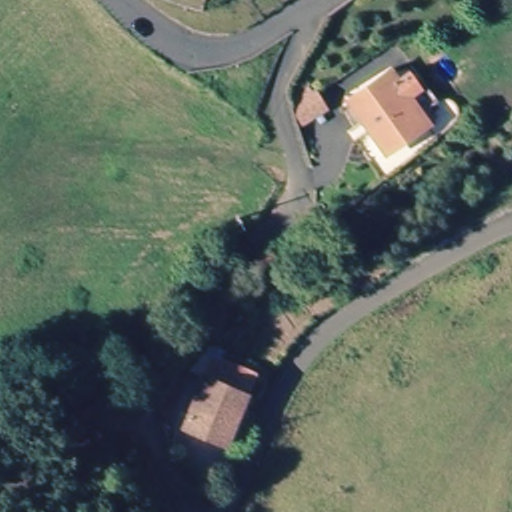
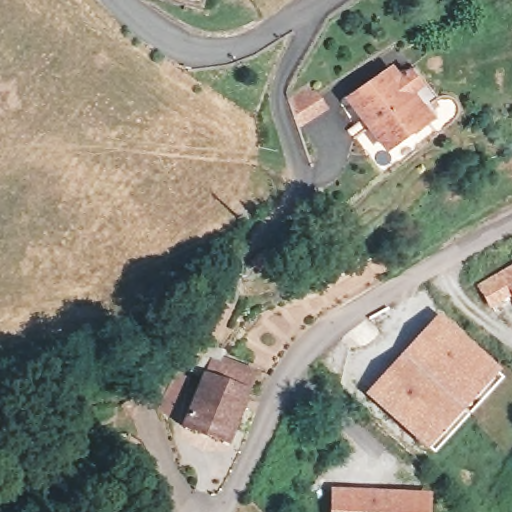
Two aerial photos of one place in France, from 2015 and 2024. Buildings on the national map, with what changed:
unchanged [(435,110),(430,115),(426,117),(433,126),(390,162),(346,110),(385,78),(396,92),(405,85),(410,80),(435,110)]
unchanged [(295,109),(315,95),(325,107),(333,117),(302,139),(300,127),(295,109)]
new [(490,309),(477,285),(512,265),(512,297),(490,309)]
new [(500,373),(427,452),(365,395),(437,316),(500,373)]
unchanged [(256,395),(226,462),(187,445),(209,397),(194,390),(214,362),(225,367),(218,379),(256,395)]
new [(430,494),(429,512),(329,512),(330,490),(430,494)]

